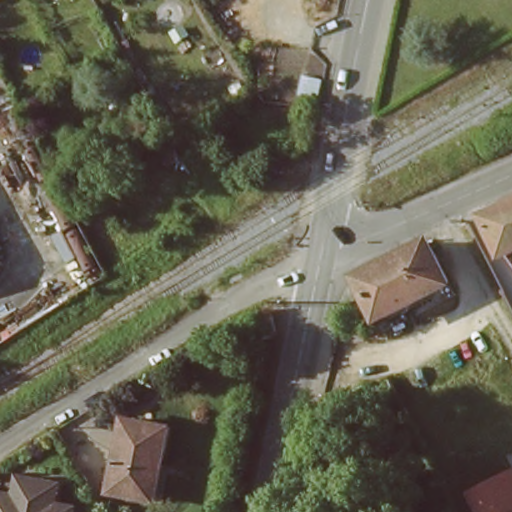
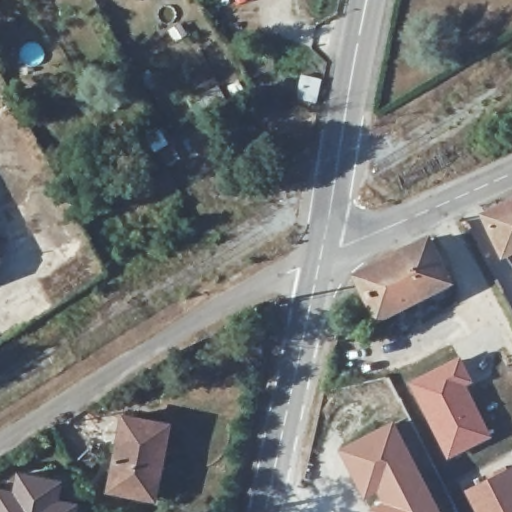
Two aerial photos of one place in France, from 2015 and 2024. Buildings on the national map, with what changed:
unchanged [(503,254),(498,244),(482,212),(506,202),(512,200),(512,250),(503,254)]
unchanged [(427,239),(449,279),(417,295),(380,314),(358,274),(396,255),(427,239)]
unchanged [(0,262),(0,257),(2,261),(0,262)]
unchanged [(282,318),(269,315),(272,302),(285,304),(282,318)]
new [(460,354),(475,382),(468,386),(492,436),(447,459),(405,380),(460,354)]
demolished [(413,364),(435,405),(432,407),(442,428),(422,438),(420,434),(392,377),(413,364)]
demolished [(390,373),(392,377),(420,434),(398,445),(395,447),(377,410),(372,413),(363,380),(390,373)]
unchanged [(122,419),(168,426),(162,463),(177,466),(175,475),(167,474),(162,502),(110,494),(122,419)]
new [(439,512),(371,512),(370,509),(382,503),(377,494),(363,500),(339,451),(394,422),(439,512)]
unchanged [(475,512),(465,492),(512,469),(512,512),(475,512)]
unchanged [(14,474),(53,479),(50,499),(70,502),(69,512),(0,512),(0,506),(10,507),(14,474)]
demolished [(457,506),(460,512),(431,512),(427,502),(424,497),(446,486),(457,506)]

